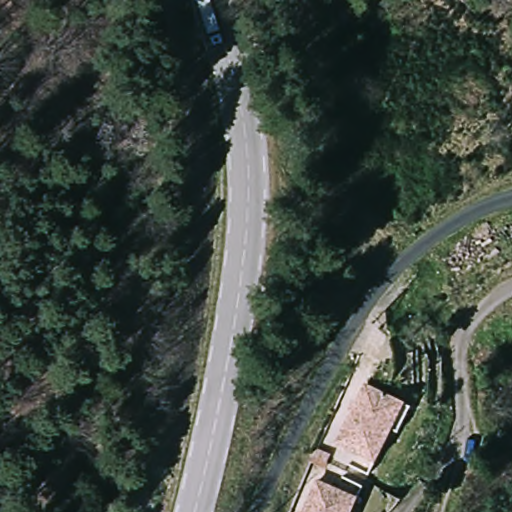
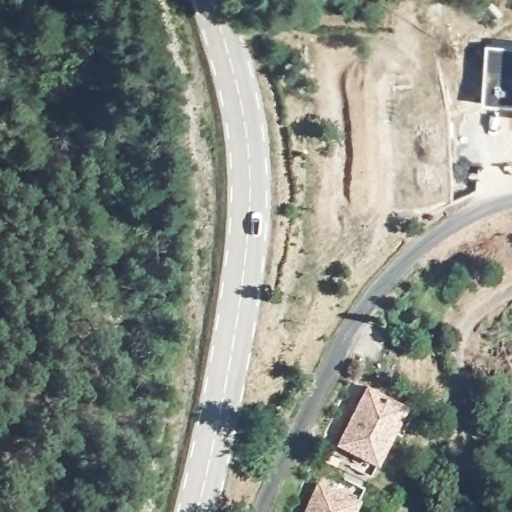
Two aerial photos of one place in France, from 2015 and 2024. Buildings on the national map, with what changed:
new [(487,44),(512,44),(512,106),(483,104),(487,44)]
unchanged [(408,406),(375,465),(335,446),(370,385),(408,406)]
unchanged [(305,512),(317,480),(358,500),(354,512),(305,512)]

